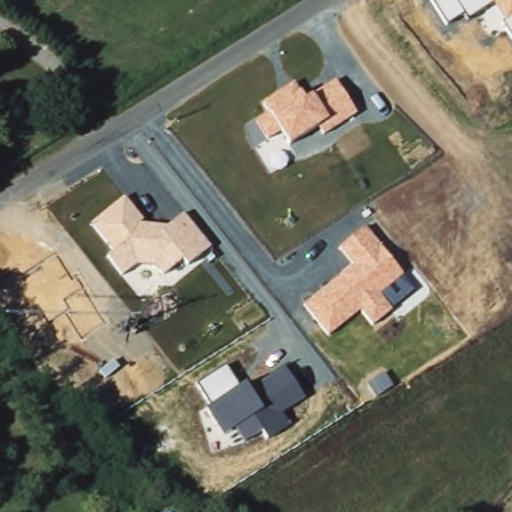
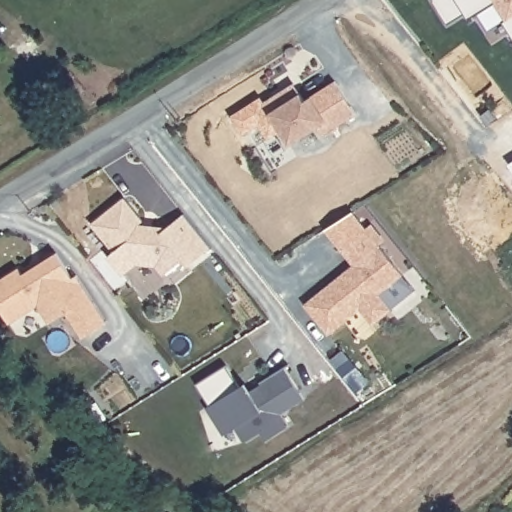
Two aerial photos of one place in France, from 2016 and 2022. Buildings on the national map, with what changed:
unchanged [(512,37),(502,23),(505,22),(492,3),(468,18),(465,14),(449,23),(433,0),(512,0),(512,37)]
unchanged [(320,126),(290,144),(283,131),(268,138),(257,120),(269,113),(263,103),(295,84),(303,96),(333,79),(355,115),(324,134),(320,126)]
unchanged [(125,197),(145,223),(169,226),(185,213),(212,249),(187,267),(182,261),(162,276),(154,265),(135,266),(124,274),(107,254),(113,250),(92,223),(125,197)]
unchanged [(355,265),(340,247),(365,227),(416,289),(374,325),(362,310),(329,335),(305,304),(355,265)]
new [(16,269),(20,275),(37,264),(53,289),(74,276),(104,324),(80,339),(63,314),(46,324),(35,306),(6,325),(0,315),(0,279),(16,269)]
unchanged [(227,367),(240,386),(246,382),(250,388),(286,367),(305,400),(281,414),(289,427),(266,440),(259,431),(242,440),(234,427),(223,434),(207,407),(212,403),(199,383),(227,367)]

